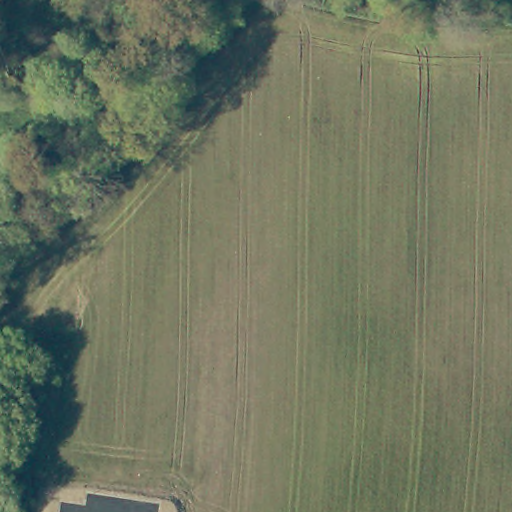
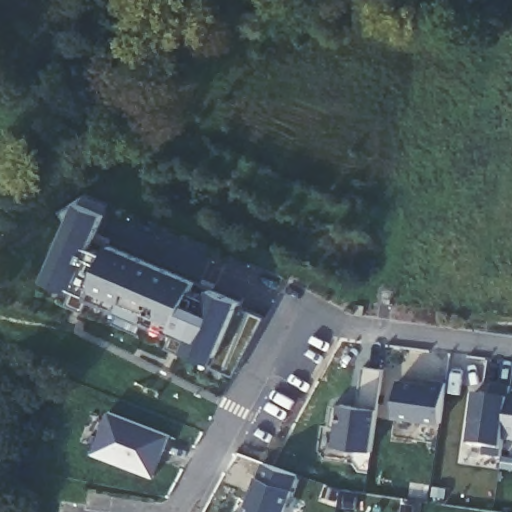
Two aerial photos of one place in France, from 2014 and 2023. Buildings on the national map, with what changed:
new [(81,193),(110,205),(93,247),(105,253),(109,246),(196,283),(192,292),(203,297),(208,288),(240,300),(237,307),(213,363),(183,353),(190,339),(171,331),(174,325),(145,312),(136,334),(112,324),(118,311),(121,305),(90,292),(87,298),(45,280),(81,193)]
new [(213,363),(237,307),(264,316),(233,376),(213,366),(213,363)]
new [(338,403),(354,405),(361,366),(380,368),(376,409),(372,450),(331,445),(338,403)]
new [(401,379),(429,382),(430,379),(446,381),(441,425),(392,419),(401,379)]
new [(503,447),(502,457),(483,456),(483,448),(467,446),(474,391),(492,395),(494,384),(512,387),(510,396),(512,396),(512,448),(503,447)]
new [(111,412),(171,435),(154,480),(91,455),(111,412)]
new [(262,460),(300,474),(286,512),(243,512),(262,460)]

